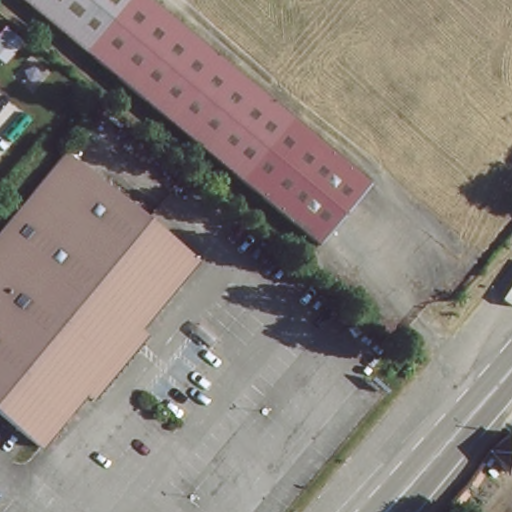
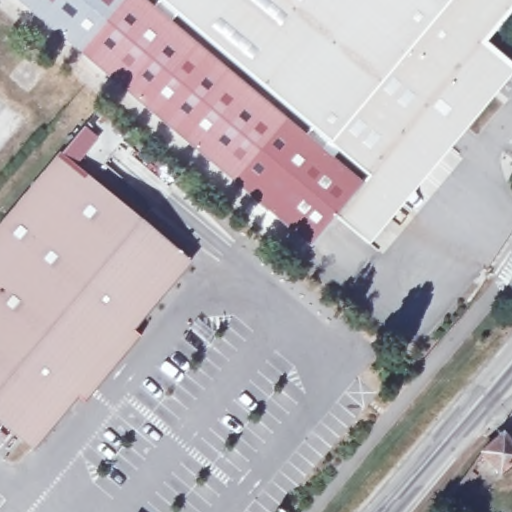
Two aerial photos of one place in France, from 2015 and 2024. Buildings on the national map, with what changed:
unchanged [(361,187),(309,247),(99,70),(16,0),(139,0),(149,9),(361,187)]
new [(290,127),(149,9),(139,0),(512,0),(512,8),(482,44),(512,69),(512,71),(368,245),(335,217),(361,187),(290,127)]
unchanged [(55,155),(183,263),(28,448),(0,425),(0,220),(55,155)]
unchanged [(501,472),(484,452),(503,435),(512,445),(512,463),(501,472)]

